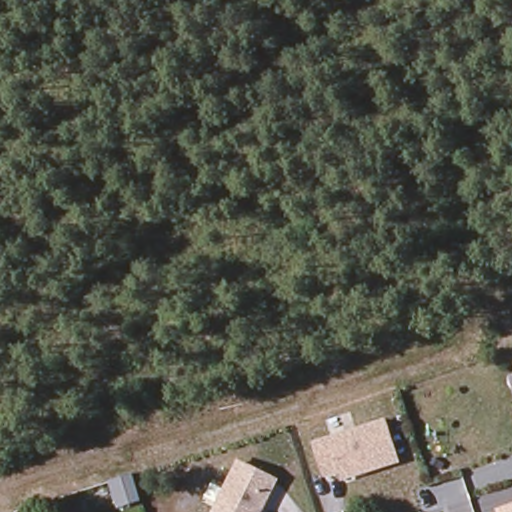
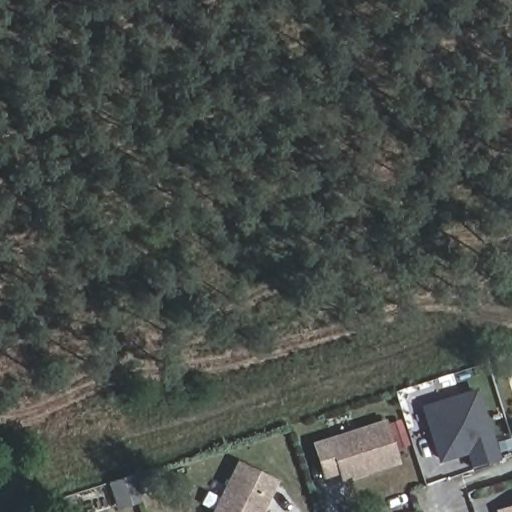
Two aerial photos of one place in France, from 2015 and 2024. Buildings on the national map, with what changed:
new [(471,469),(466,452),(438,462),(421,405),(478,387),(501,458),(471,469)]
unchanged [(379,421),(392,460),(337,476),(335,468),(320,473),(311,443),(379,421)]
unchanged [(275,476),(258,508),(255,510),(254,512),(213,512),(239,459),(275,476)]
new [(127,476),(135,500),(114,507),(107,483),(127,476)]
unchanged [(512,505),(512,512),(496,512),(496,510),(512,505)]

